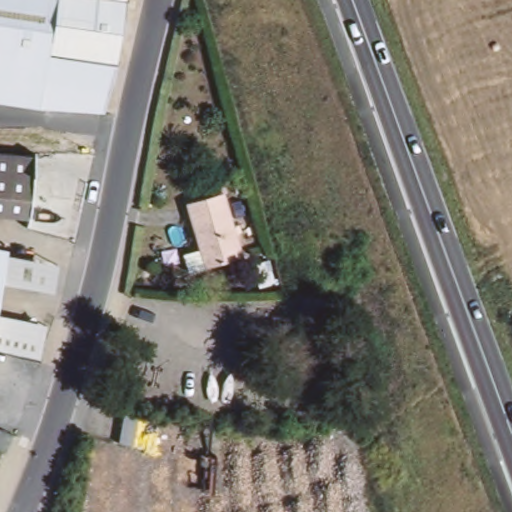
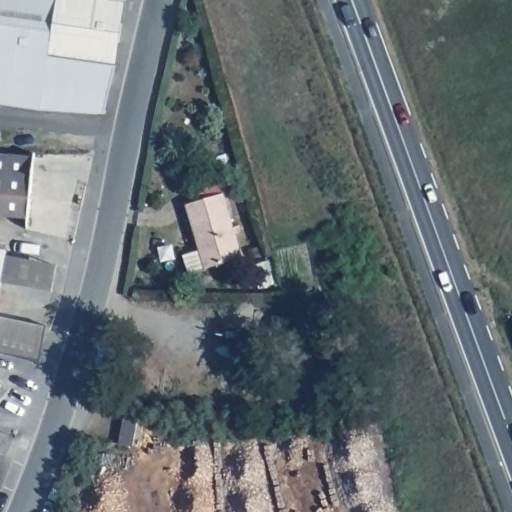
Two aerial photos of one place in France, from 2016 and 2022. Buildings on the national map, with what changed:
unchanged [(9,107),(0,106),(0,0),(60,0),(45,110),(9,107)]
unchanged [(45,110),(60,0),(124,0),(104,114),(45,110)]
unchanged [(29,222),(0,220),(0,158),(35,161),(29,222)]
unchanged [(188,256),(203,252),(192,210),(230,200),(247,262),(207,271),(193,275),(188,256)]
unchanged [(0,291),(0,254),(6,255),(0,291)]

